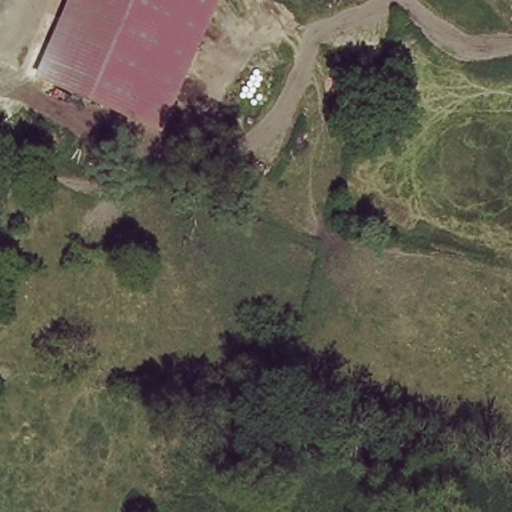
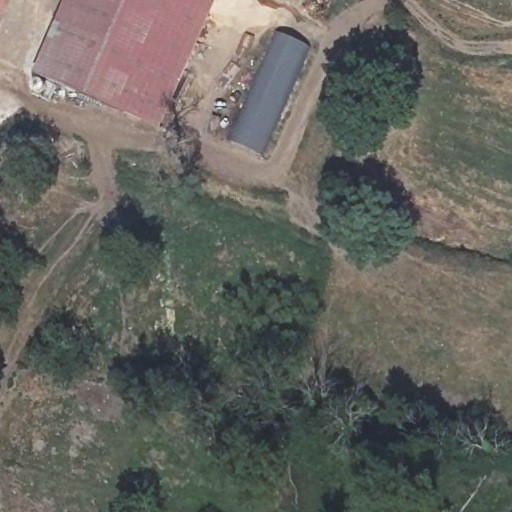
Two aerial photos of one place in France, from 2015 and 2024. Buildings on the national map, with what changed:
unchanged [(0,5),(0,0),(2,0),(0,5)]
unchanged [(71,0),(216,0),(183,84),(168,122),(84,89),(42,72),(46,63),(71,0)]
new [(285,36),(292,39),(294,46),(301,50),(303,45),(308,47),(261,155),(231,142),(264,67),(270,70),(285,36)]

